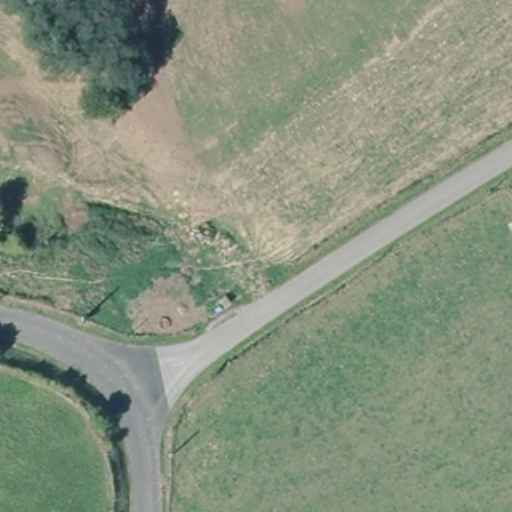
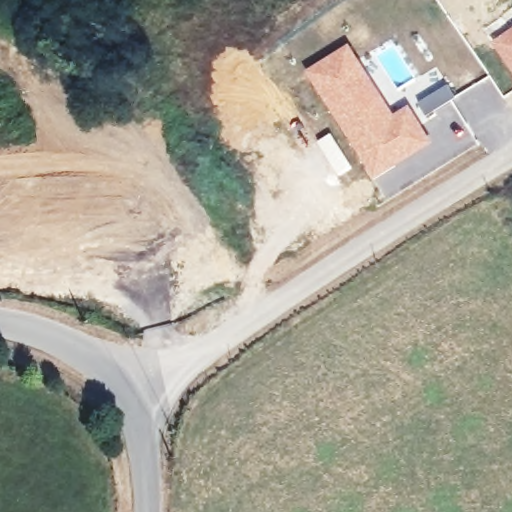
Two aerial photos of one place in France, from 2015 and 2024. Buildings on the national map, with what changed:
new [(512,27),(512,69),(492,41),(512,27)]
new [(350,43),(393,113),(409,104),(432,142),(373,179),(306,70),(350,43)]
new [(447,83),(455,97),(426,115),(418,100),(447,83)]
new [(331,133),(352,167),(338,175),(317,140),(331,133)]

